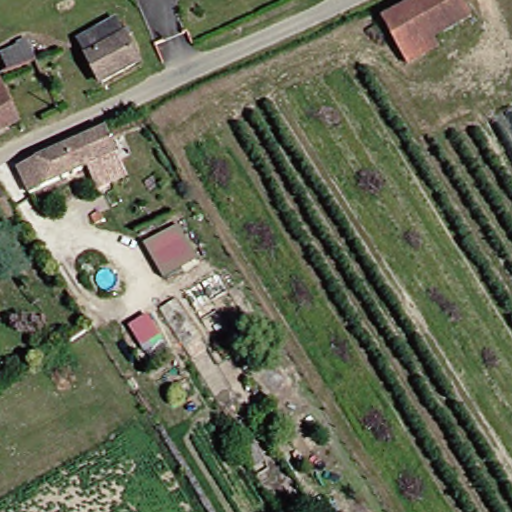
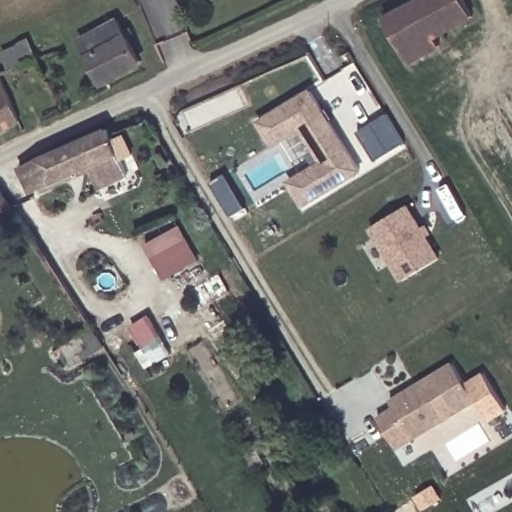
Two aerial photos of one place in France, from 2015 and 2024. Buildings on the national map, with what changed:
unchanged [(454,0),(463,19),(423,40),(428,50),(398,66),(374,21),(414,0),(454,0)]
unchanged [(116,30),(128,55),(92,73),(79,48),(116,30)]
new [(307,92),(355,172),(299,206),(285,183),(318,162),(297,128),(269,146),(255,124),(307,92)]
unchanged [(0,129),(0,95),(13,121),(0,129)]
new [(385,113),(403,142),(373,160),(355,132),(385,113)]
unchanged [(90,137),(102,161),(29,193),(17,169),(90,137)]
new [(405,208),(437,261),(400,283),(368,230),(405,208)]
unchanged [(167,241),(178,257),(168,264),(157,248),(167,241)]
new [(393,408),(389,401),(451,363),(474,400),(395,448),(377,418),(393,408)]

